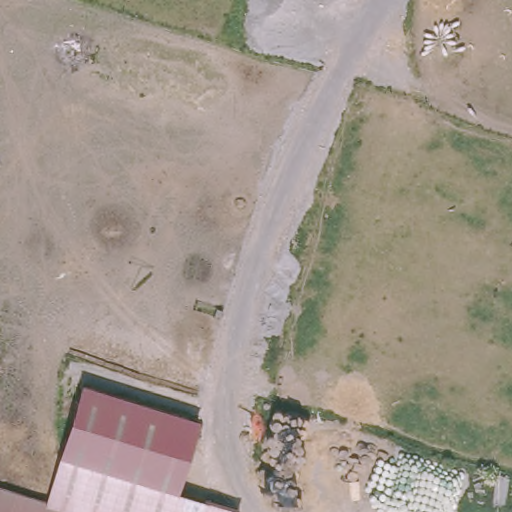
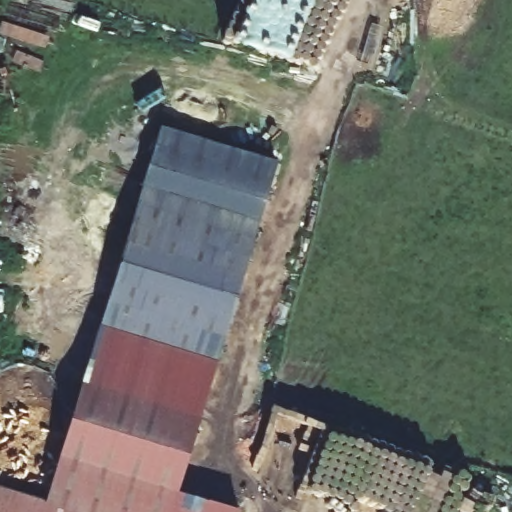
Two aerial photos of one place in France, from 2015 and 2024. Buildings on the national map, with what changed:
new [(82,385),(160,127),(277,162),(200,421),(82,385)]
unchanged [(82,385),(200,421),(180,492),(238,512),(81,512),(47,502),(82,385)]
unchanged [(0,512),(0,486),(81,512),(0,512)]

